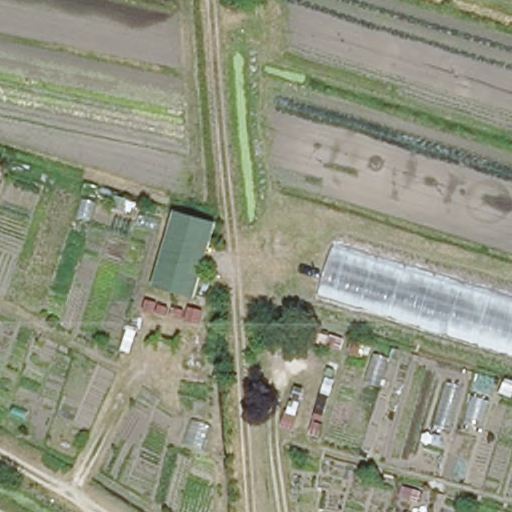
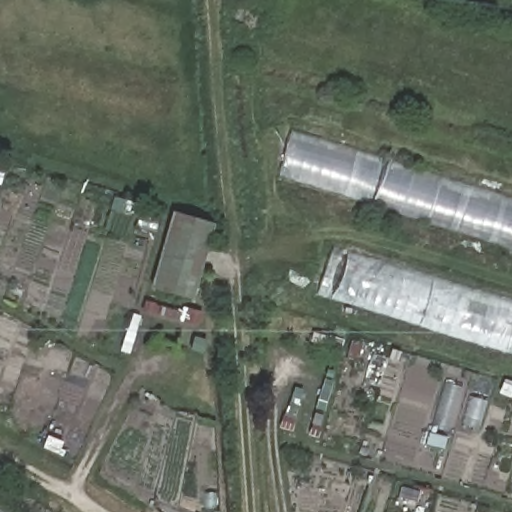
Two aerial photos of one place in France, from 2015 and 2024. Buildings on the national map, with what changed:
new [(282,175),(295,130),(512,197),(512,248),(282,175)]
unchanged [(212,225),(190,297),(155,287),(175,214),(212,225)]
unchanged [(320,292),(334,245),(512,299),(512,351),(320,292)]

